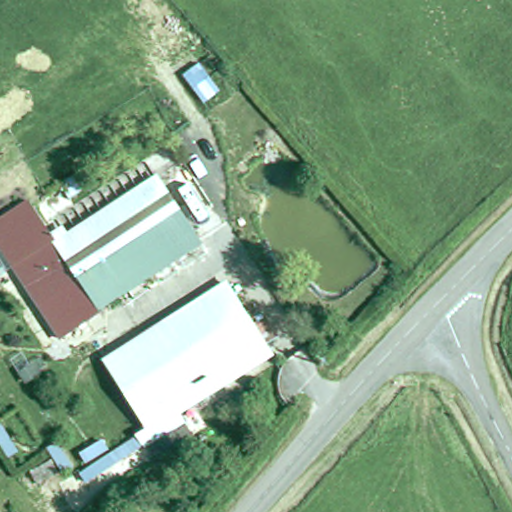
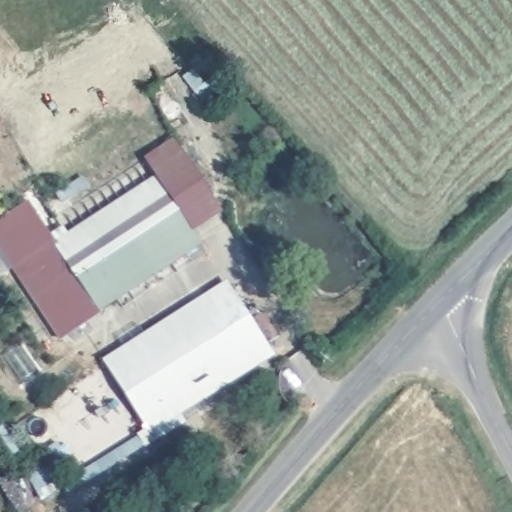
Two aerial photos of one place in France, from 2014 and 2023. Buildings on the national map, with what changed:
new [(164,178),(160,181),(143,156),(172,136),(220,212),(196,228),(164,178)]
unchanged [(56,239),(61,246),(164,178),(204,240),(103,306),(107,311),(65,339),(17,265),(56,239)]
unchanged [(32,200),(56,239),(17,265),(0,238),(0,220),(32,200)]
unchanged [(274,356),(151,433),(108,366),(230,287),(274,356)]

